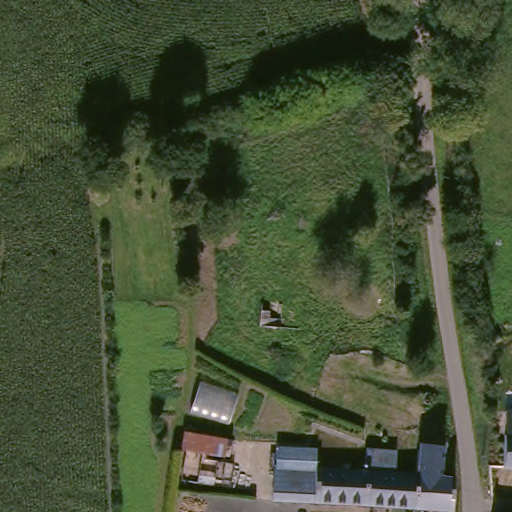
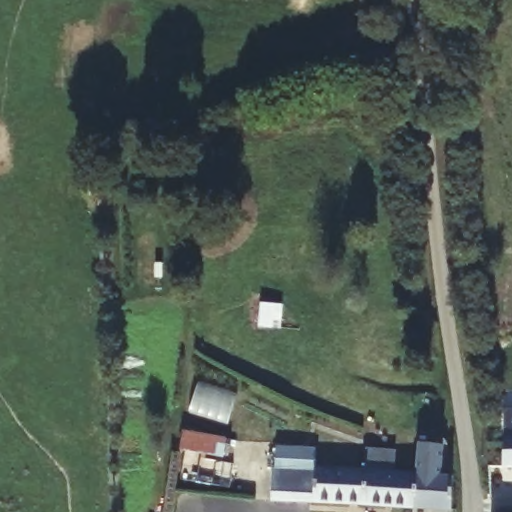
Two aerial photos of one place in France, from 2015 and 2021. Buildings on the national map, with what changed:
unchanged [(280,467),(373,473),(373,470),(374,447),(403,449),(402,471),(422,472),(422,477),(421,505),(278,498),(280,467)]
unchanged [(422,477),(422,472),(422,450),(444,451),(444,472),(453,473),(455,490),(454,507),(421,505),(422,477)]

